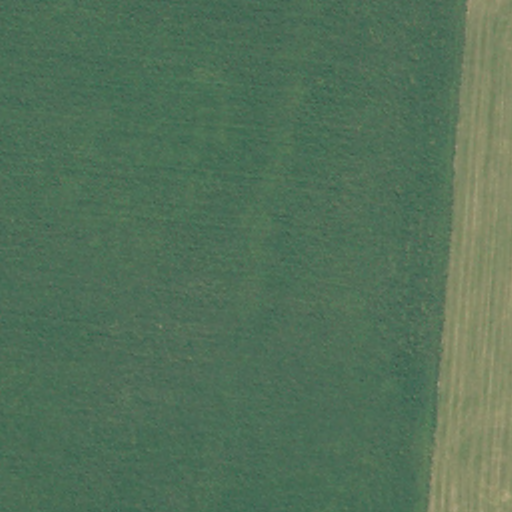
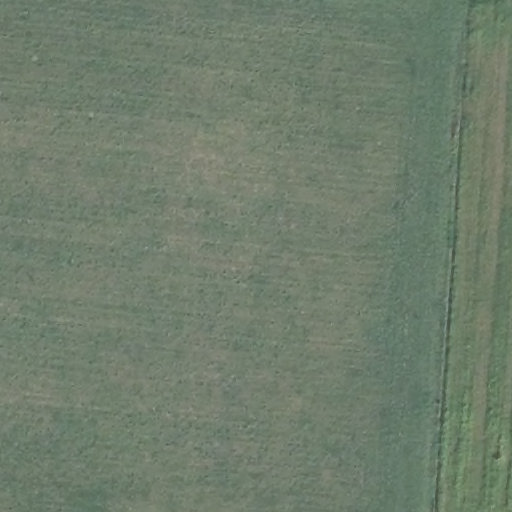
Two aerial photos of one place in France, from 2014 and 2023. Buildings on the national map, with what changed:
[]

